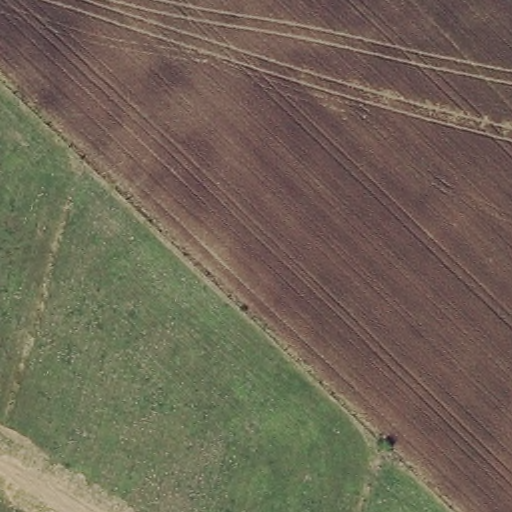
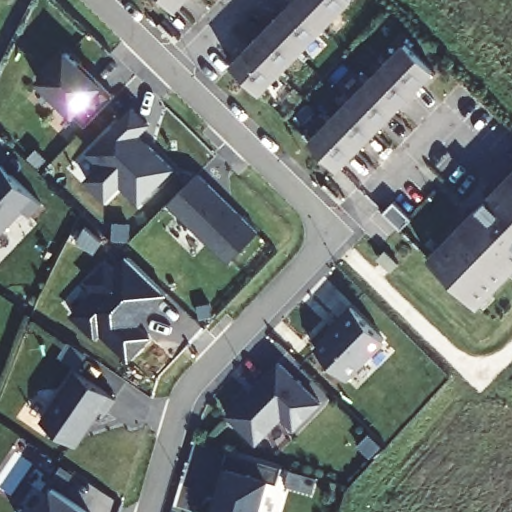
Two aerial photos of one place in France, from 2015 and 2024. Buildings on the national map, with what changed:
new [(177,9),(167,0),(186,0),(177,9)]
new [(261,93),(231,66),(284,10),(273,0),(354,0),(261,93)]
new [(437,71),(341,170),(310,141),(405,41),(437,71)]
new [(80,64),(82,61),(117,96),(86,125),(40,81),(67,52),(80,64)]
new [(152,123),(142,134),(175,169),(140,203),(122,187),(107,201),(85,179),(99,165),(87,153),(133,105),(152,123)]
new [(32,217),(24,209),(0,234),(0,163),(1,162),(43,205),(32,217)]
new [(479,304),(429,257),(512,171),(512,271),(479,304)]
new [(260,232),(230,263),(166,204),(198,172),(260,232)]
new [(139,330),(152,342),(127,366),(99,341),(96,345),(69,321),(91,296),(82,287),(105,264),(116,272),(125,261),(166,301),(139,330)]
new [(386,340),(347,378),(315,350),(356,310),(386,340)]
new [(322,402),(294,429),(283,419),(256,444),(227,415),(280,361),(322,402)]
new [(116,397),(105,412),(100,409),(77,443),(42,421),(77,370),(116,397)]
new [(277,482),(270,478),(261,512),(213,512),(226,467),(224,467),(230,451),(282,466),(277,482)]
new [(35,512),(52,486),(94,512),(35,512)]

